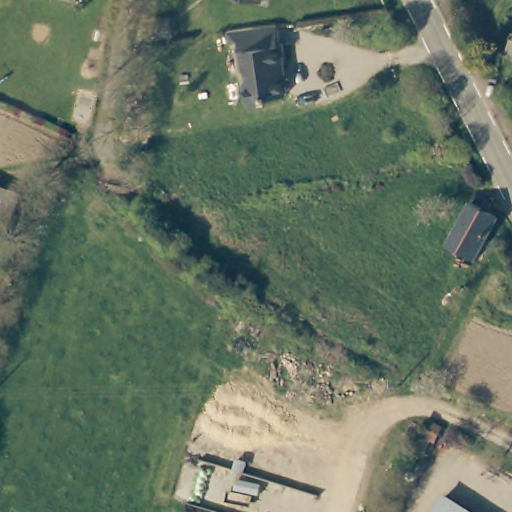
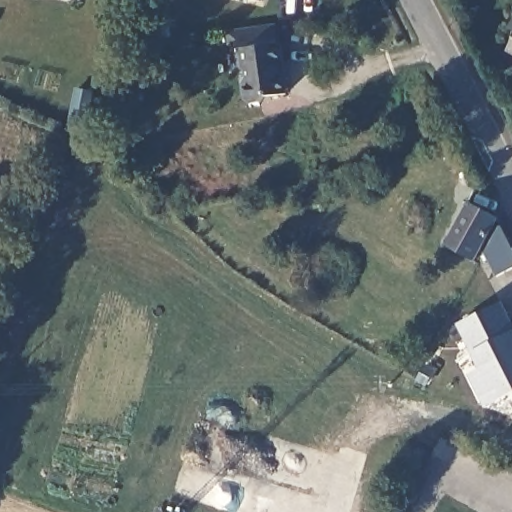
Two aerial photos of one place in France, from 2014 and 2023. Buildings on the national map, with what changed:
unchanged [(251,0),(262,0),(262,3),(251,0)]
unchanged [(278,61),(276,61),(277,73),(282,75),(282,86),(277,93),(258,94),(254,101),(244,101),(237,96),(235,82),(241,79),(240,68),(235,65),(232,36),(221,37),(221,26),(232,25),(248,23),(272,20),(273,41),(277,41),(278,61)]
unchanged [(20,195),(4,241),(0,240),(0,189),(20,195)]
unchanged [(473,262),(447,249),(471,205),(496,220),(473,262)]
new [(462,360),(473,354),(458,326),(501,304),(512,327),(512,395),(502,400),(487,409),(482,401),(462,360)]
unchanged [(479,512),(432,512),(446,491),(479,512)]

